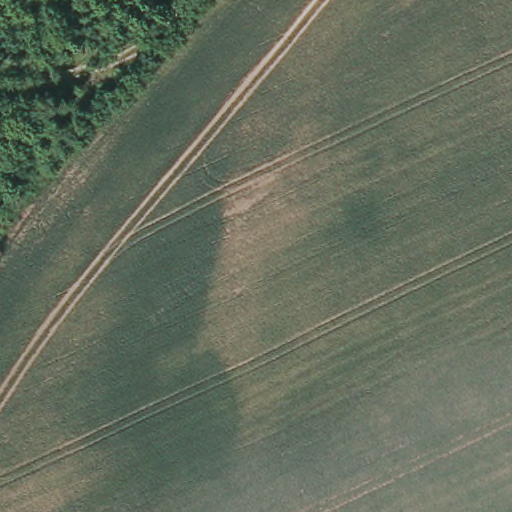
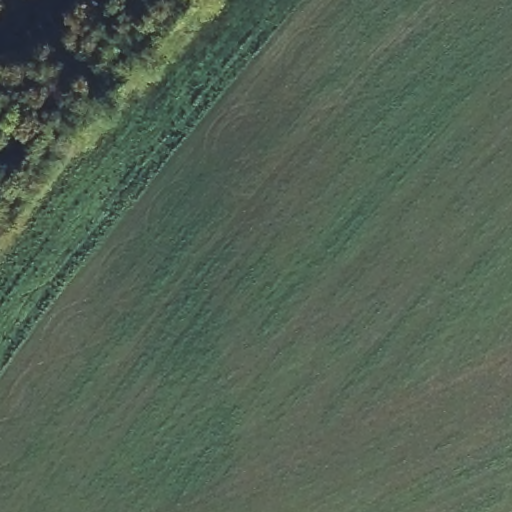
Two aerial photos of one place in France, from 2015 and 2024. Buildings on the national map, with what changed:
[]

